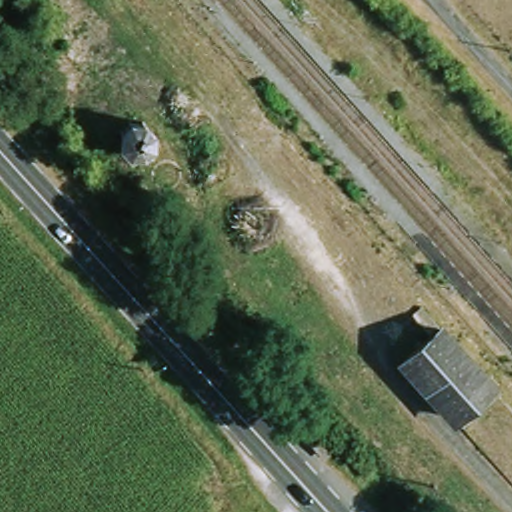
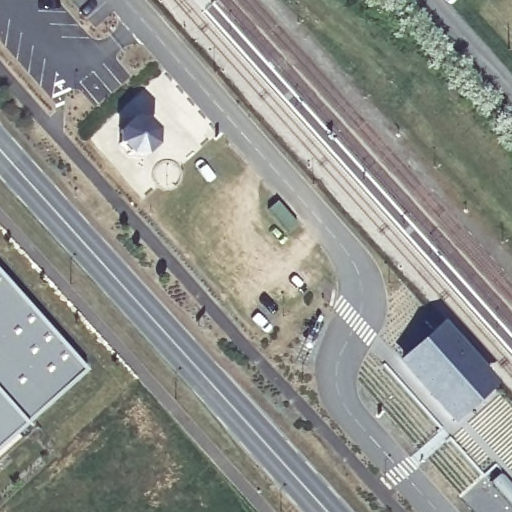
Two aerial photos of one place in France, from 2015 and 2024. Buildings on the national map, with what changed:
new [(82,368),(0,443),(0,278),(82,368)]
unchanged [(453,428),(393,365),(438,326),(497,387),(453,428)]

